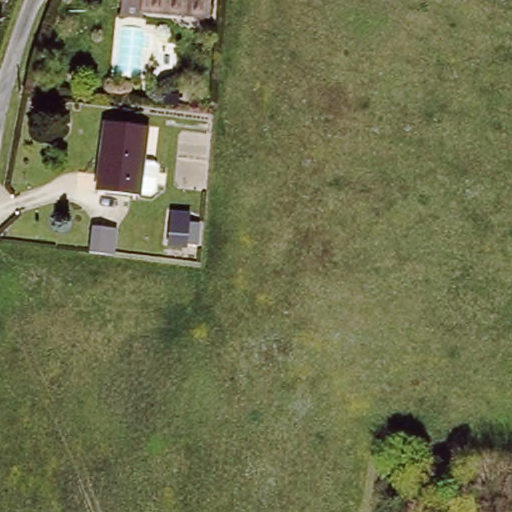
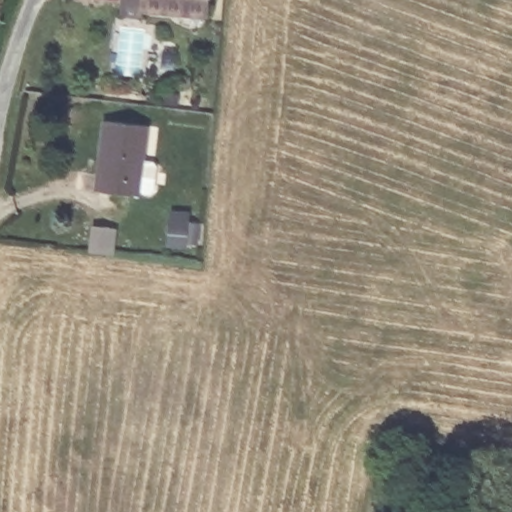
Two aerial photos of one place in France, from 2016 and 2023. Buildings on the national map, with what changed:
unchanged [(210,0),(209,11),(190,10),(189,16),(142,12),(142,15),(122,13),(123,0),(210,0)]
unchanged [(103,142),(107,120),(147,127),(137,196),(103,191),(106,176),(97,175),(103,142)]
unchanged [(172,211),(191,214),(190,221),(185,248),(167,245),(172,218),(172,211)]

